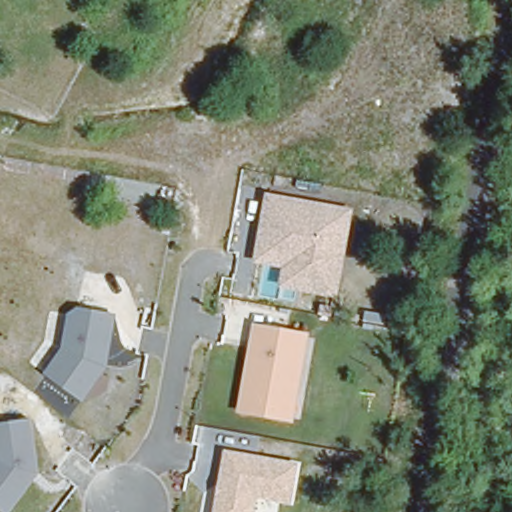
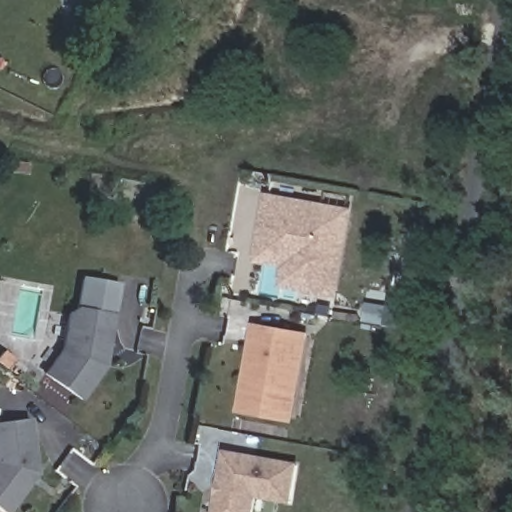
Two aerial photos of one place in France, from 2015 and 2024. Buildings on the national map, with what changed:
unchanged [(339,298),(279,289),(283,266),(254,262),(265,193),(355,209),(339,298)]
new [(80,306),(84,277),(122,283),(118,314),(80,306)]
unchanged [(110,366),(84,403),(44,374),(62,350),(66,314),(80,306),(118,314),(110,366)]
unchanged [(294,424),(237,414),(254,322),(311,333),(294,424)]
unchanged [(12,512),(3,512),(0,509),(0,422),(34,417),(42,472),(12,512)]
unchanged [(259,499),(256,512),(212,512),(224,449),(301,462),(294,504),(259,499)]

